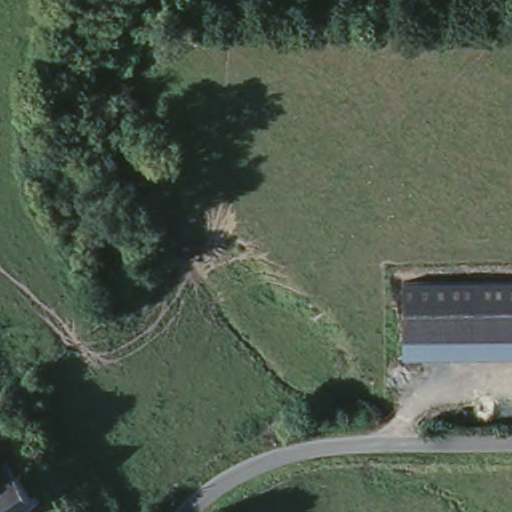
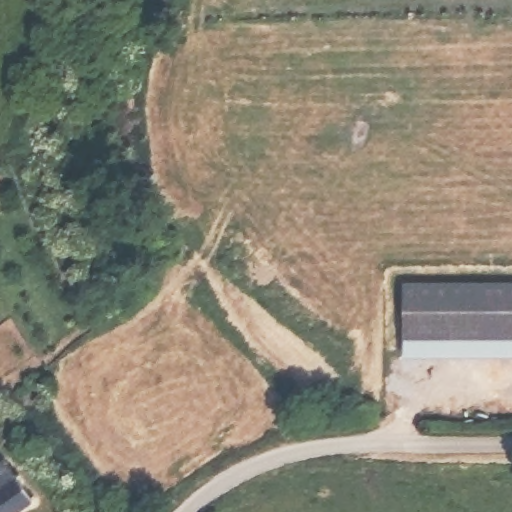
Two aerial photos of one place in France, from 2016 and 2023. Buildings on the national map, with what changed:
unchanged [(512,361),(403,361),(404,281),(512,282),(512,361)]
unchanged [(12,462),(39,504),(26,512),(0,512),(0,470),(12,462)]

